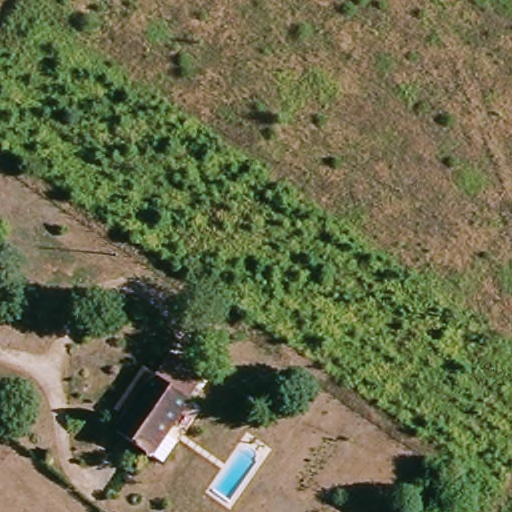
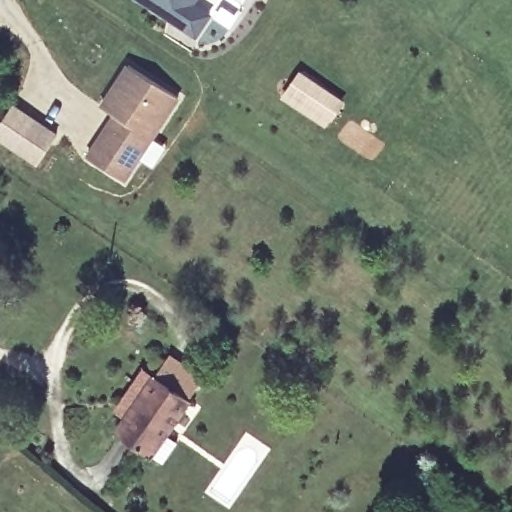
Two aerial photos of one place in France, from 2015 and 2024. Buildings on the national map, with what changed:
new [(211,15),(196,37),(140,0),(197,0),(194,4),(211,15)]
new [(180,97),(126,180),(87,154),(112,114),(99,105),(126,64),(180,97)]
new [(346,101),(327,128),(281,97),(299,70),(346,101)]
new [(0,141),(0,123),(14,102),(59,134),(38,166),(0,141)]
unchanged [(152,379),(172,355),(201,375),(186,400),(152,462),(116,432),(126,420),(112,412),(141,368),(152,379)]

